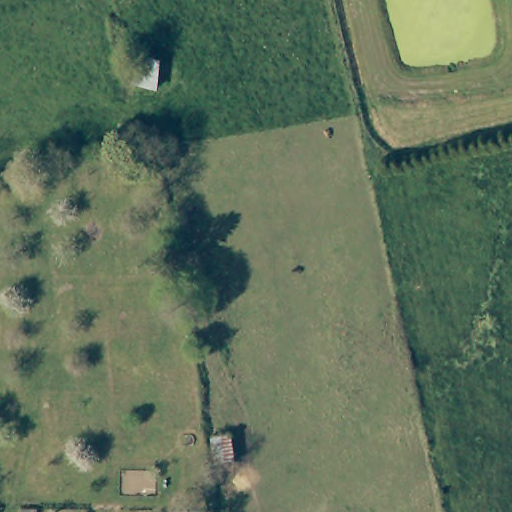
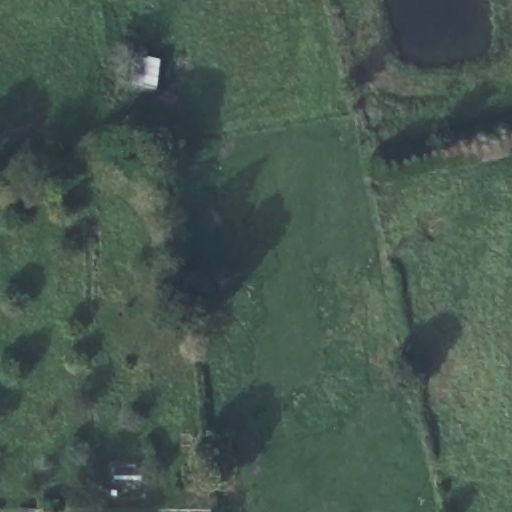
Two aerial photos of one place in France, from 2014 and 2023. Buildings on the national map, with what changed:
unchanged [(137,51),(161,53),(157,86),(131,79),(137,51)]

